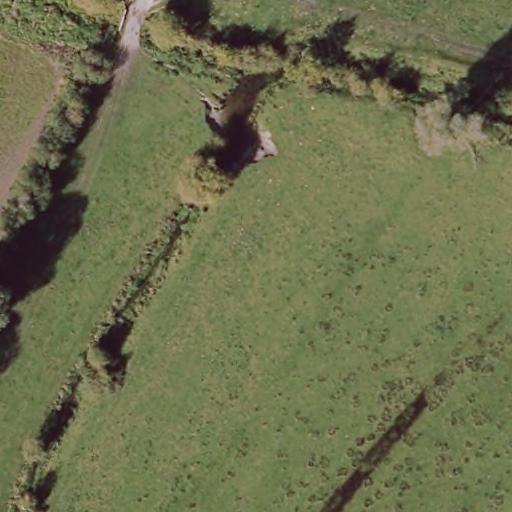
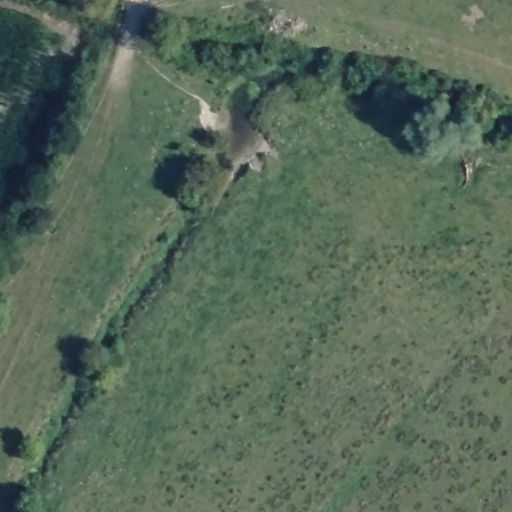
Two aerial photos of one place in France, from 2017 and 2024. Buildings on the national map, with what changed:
[]

